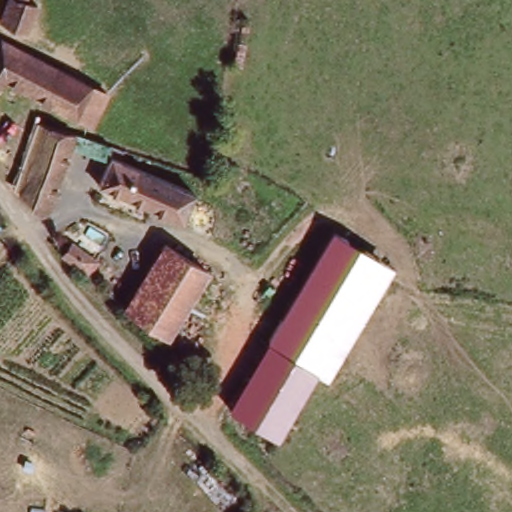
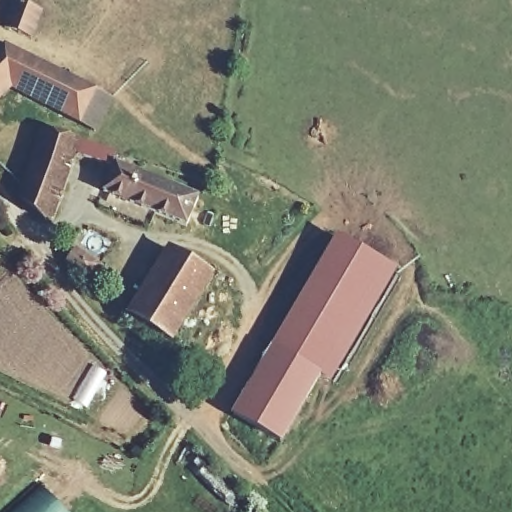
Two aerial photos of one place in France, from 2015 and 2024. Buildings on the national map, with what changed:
unchanged [(18,28),(14,23),(24,0),(40,0),(37,6),(50,11),(40,35),(18,28)]
unchanged [(0,58),(17,43),(115,99),(97,133),(18,88),(0,104),(0,58)]
unchanged [(56,220),(45,219),(20,195),(45,126),(115,150),(112,165),(77,154),(56,220)]
unchanged [(189,224),(106,189),(119,160),(200,195),(189,224)]
unchanged [(322,372),(276,346),(333,249),(342,236),(387,262),(377,281),(322,372)]
unchanged [(178,339),(137,313),(177,248),(219,274),(178,339)]
unchanged [(90,270),(83,280),(68,270),(77,258),(90,270)]
unchanged [(276,346),(322,372),(285,437),(239,410),(276,346)]
new [(65,512),(6,512),(38,482),(65,512)]

